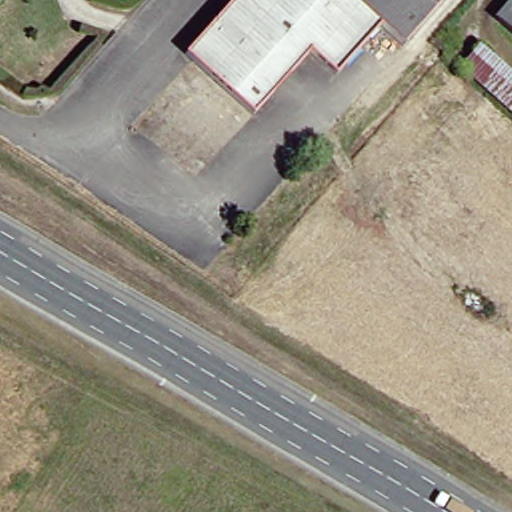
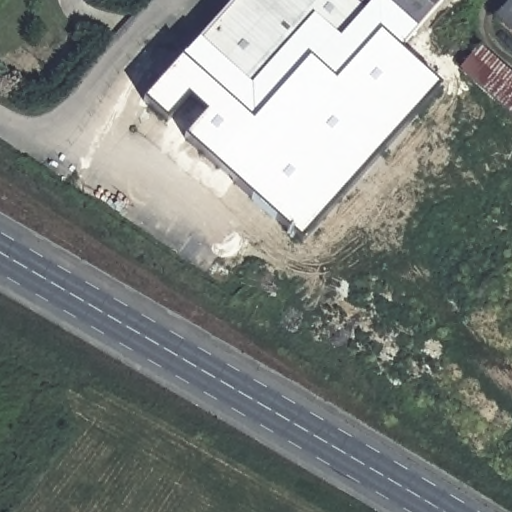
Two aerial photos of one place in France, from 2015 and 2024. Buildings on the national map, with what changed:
unchanged [(408,31),(395,45),(372,25),(327,75),(302,51),(282,73),(271,63),(256,80),(267,90),(245,115),(177,53),(225,0),(435,0),(408,31)]
unchanged [(507,0),(512,0),(512,36),(492,18),(507,0)]
new [(302,242),(186,137),(207,113),(191,96),(167,121),(140,96),(177,53),(245,115),(267,90),(256,80),(271,63),(282,73),(302,51),(327,75),(372,25),(395,45),(442,88),(302,242)]
unchanged [(512,117),(457,68),(475,47),(512,80),(512,117)]

